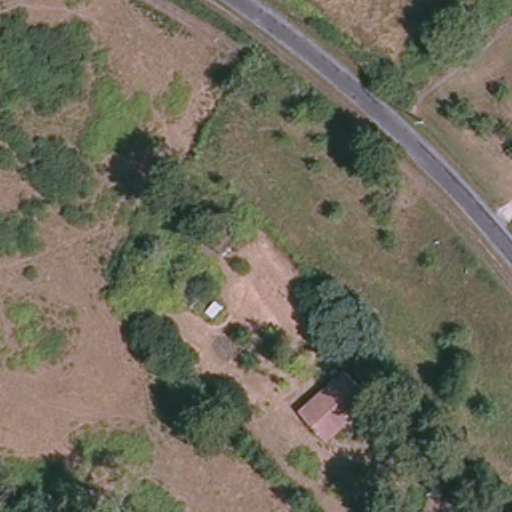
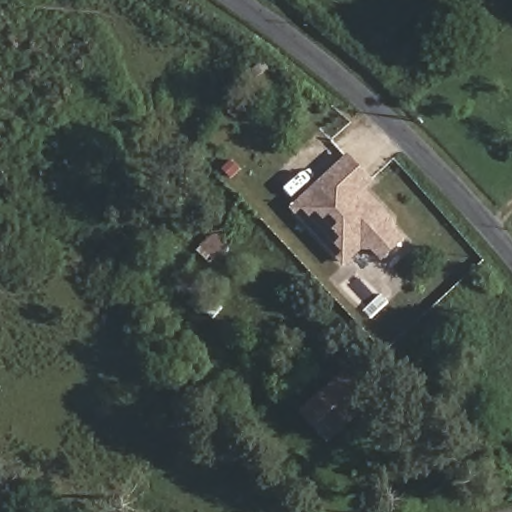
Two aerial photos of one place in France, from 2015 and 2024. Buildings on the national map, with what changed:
new [(348,154),(375,182),(367,191),(395,222),(394,228),(404,241),(382,262),(373,252),(363,251),(344,266),(290,209),(348,154)]
unchanged [(199,251),(222,225),(236,239),(210,262),(199,251)]
unchanged [(326,441),(300,411),(348,370),(373,401),(326,441)]

